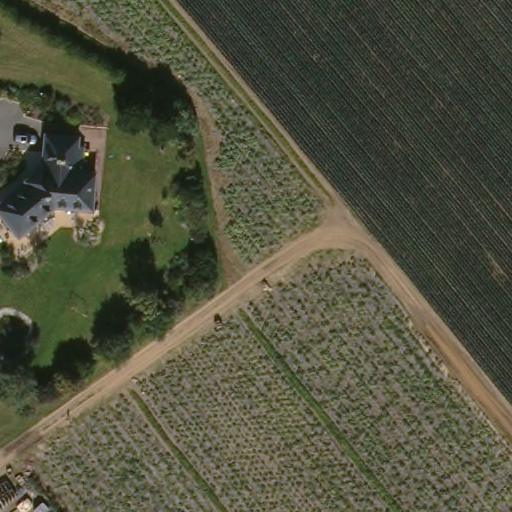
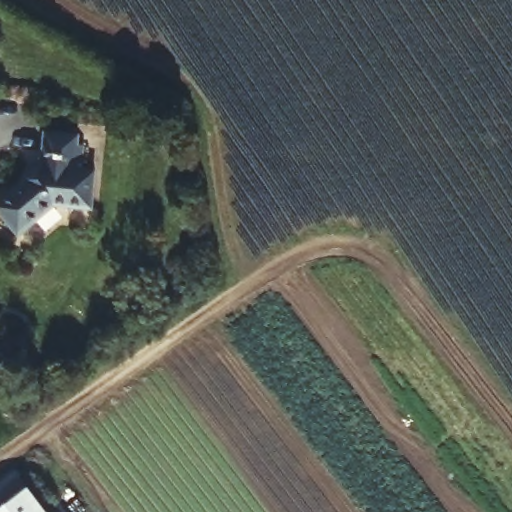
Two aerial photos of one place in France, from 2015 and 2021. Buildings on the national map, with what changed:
unchanged [(53,128),(89,135),(85,146),(93,149),(86,172),(101,175),(91,211),(63,205),(21,235),(0,210),(0,193),(45,159),(53,128)]
new [(40,512),(0,512),(0,508),(22,490),(40,512)]

